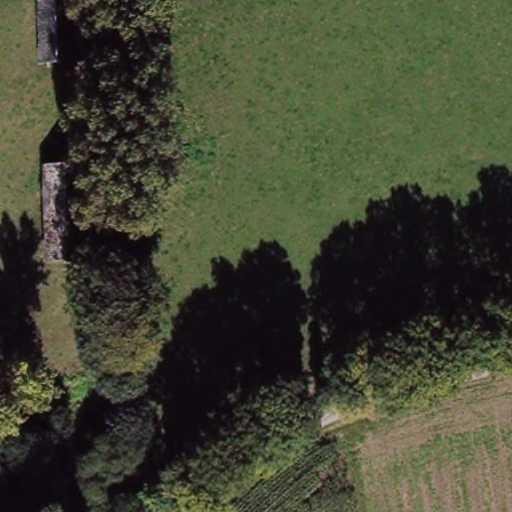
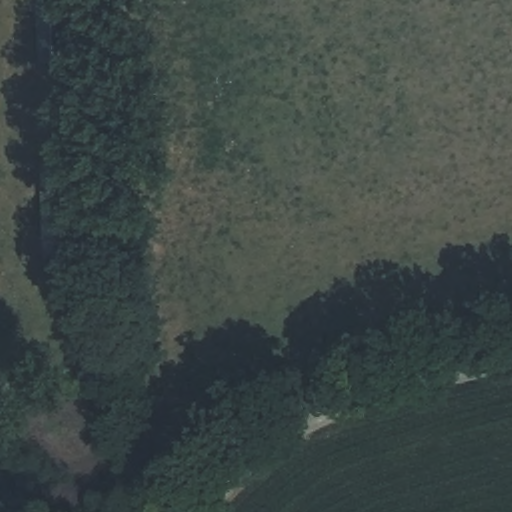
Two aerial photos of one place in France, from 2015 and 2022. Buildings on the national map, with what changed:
unchanged [(40,62),(38,0),(69,0),(70,61),(40,62)]
unchanged [(78,171),(81,263),(48,265),(46,172),(78,171)]

